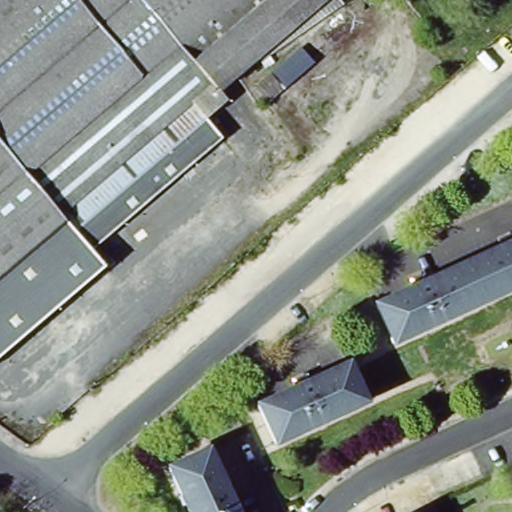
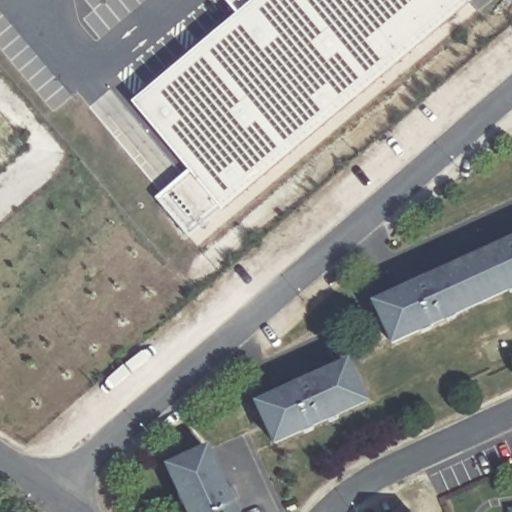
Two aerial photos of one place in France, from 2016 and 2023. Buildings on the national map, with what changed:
demolished [(161,96),(183,122),(177,127),(113,187),(95,214),(76,241),(72,246),(0,353),(0,11),(13,0),(82,0),(161,96)]
demolished [(231,88),(183,122),(161,96),(82,0),(356,0),(231,88)]
new [(188,171),(130,103),(235,14),(222,0),(472,0),(222,209),(189,237),(156,198),(188,171)]
demolished [(317,35),(331,51),(271,99),(256,85),(317,35)]
demolished [(76,241),(95,214),(113,187),(177,127),(183,122),(231,88),(245,104),(224,122),(241,140),(109,252),(127,274),(1,382),(0,381),(0,353),(72,246),(76,241)]
unchanged [(378,307),(416,290),(411,278),(424,272),(430,284),(504,249),(499,237),(512,232),(512,293),(396,345),(378,307)]
unchanged [(261,407),(298,391),(293,379),(306,373),(311,384),(350,368),(367,406),(278,445),(261,407)]
unchanged [(222,489),(235,484),(241,499),(229,504),(233,512),(188,512),(168,468),(205,452),(222,489)]

